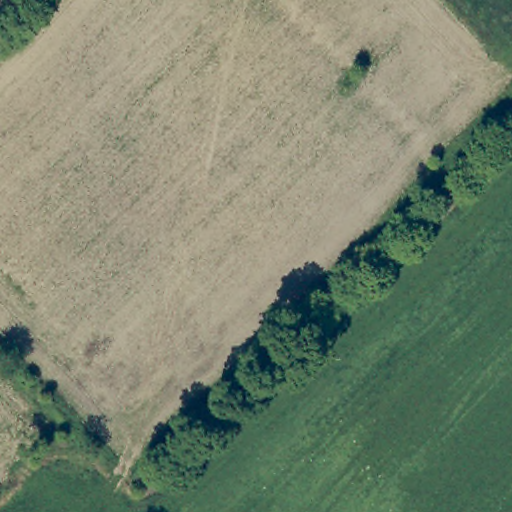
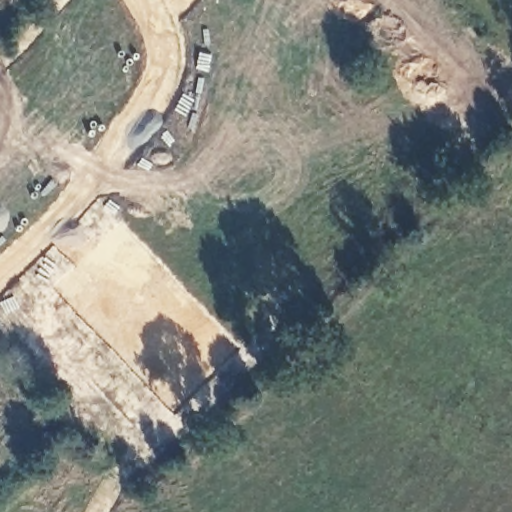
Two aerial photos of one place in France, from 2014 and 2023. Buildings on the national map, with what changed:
[]

